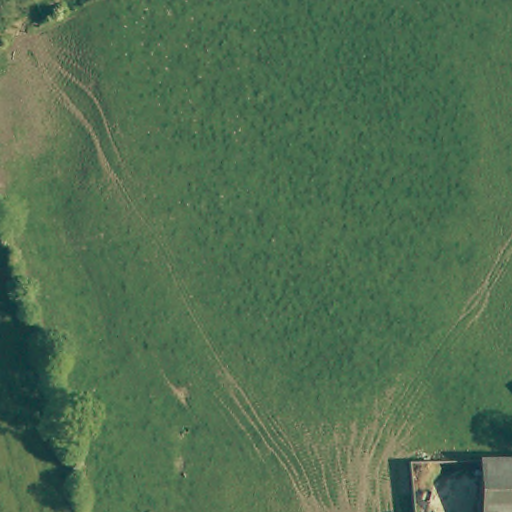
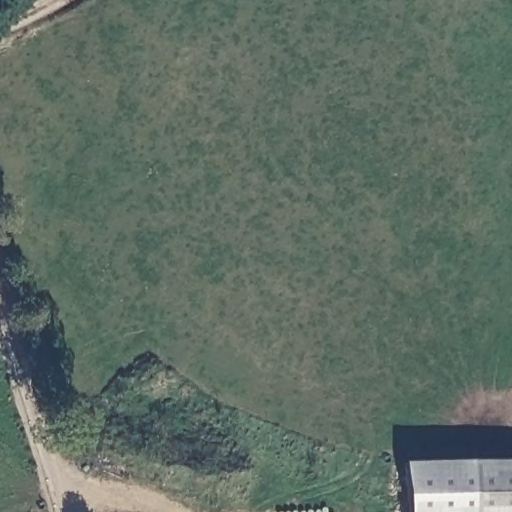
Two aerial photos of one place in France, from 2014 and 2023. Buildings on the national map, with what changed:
new [(472,459),(474,512),(409,512),(405,461),(472,459)]
new [(472,459),(504,459),(512,459),(512,512),(474,512),(472,468),(472,459)]

